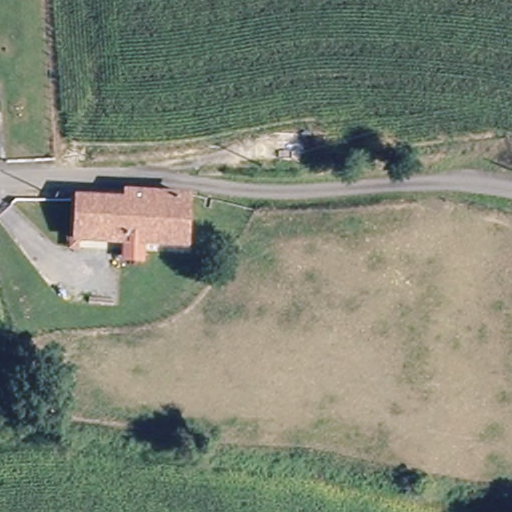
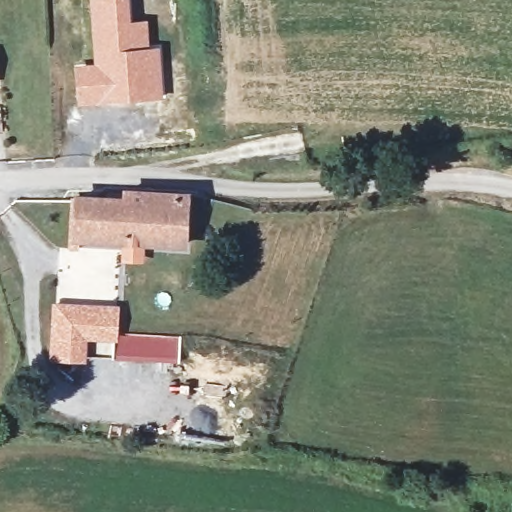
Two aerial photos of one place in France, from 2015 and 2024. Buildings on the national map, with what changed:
new [(103,104),(103,100),(82,102),(80,70),(100,69),(96,0),(124,0),(126,26),(145,25),(147,53),(157,52),(160,93),(160,99),(103,104)]
unchanged [(123,198),(124,189),(191,194),(189,249),(145,247),(145,264),(121,263),(122,246),(72,242),(76,195),(123,198)]
demolished [(119,300),(99,295),(107,265),(126,270),(119,300)]
new [(54,307),(114,309),(112,359),(52,357),(54,307)]

